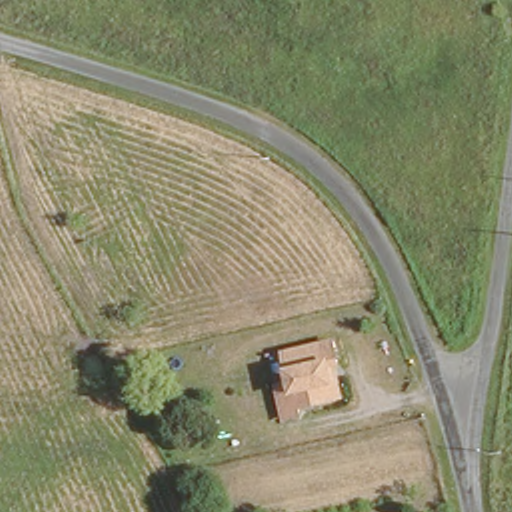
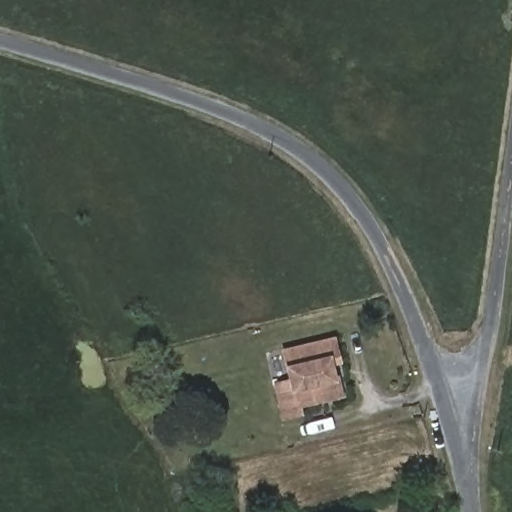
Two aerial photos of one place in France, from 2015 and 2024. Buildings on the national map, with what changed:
unchanged [(282,414),(276,383),(289,380),(283,350),(334,339),(339,361),(331,361),(337,395),(296,402),(298,412),(282,414)]

